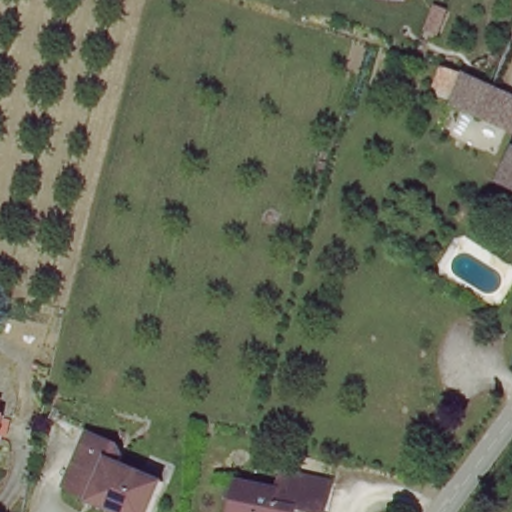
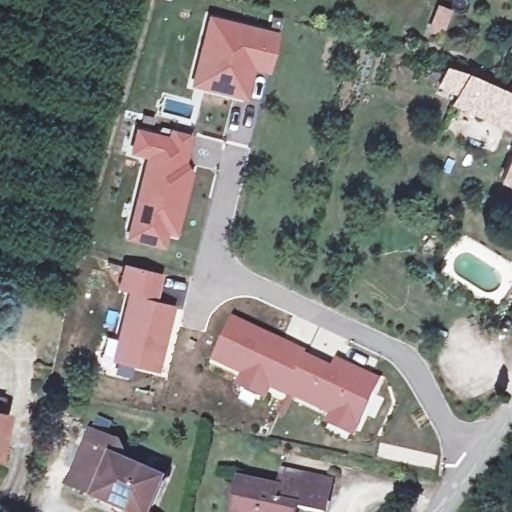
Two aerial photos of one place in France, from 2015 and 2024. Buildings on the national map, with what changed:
new [(204,16),(273,33),(265,68),(248,64),(241,94),(204,85),(188,82),(198,42),(204,16)]
unchanged [(460,80),(490,89),(512,99),(512,140),(446,111),(460,80)]
new [(184,132),(177,162),(182,170),(168,231),(124,220),(141,154),(126,150),(130,129),(163,137),(165,127),(184,132)]
unchanged [(508,157),(512,159),(512,193),(496,184),(508,157)]
new [(158,229),(154,243),(121,235),(124,220),(158,229)]
new [(109,361),(107,361),(123,290),(113,287),(120,262),(162,272),(157,299),(175,304),(158,373),(131,367),(128,378),(106,371),(109,361)]
new [(233,316),(307,351),(331,364),(335,357),(380,377),(353,437),(321,422),(325,414),(270,390),(264,401),(232,386),(237,375),(213,364),(233,316)]
unchanged [(2,402),(0,407),(0,402),(2,402)]
unchanged [(4,421),(0,437),(0,420),(4,421)]
unchanged [(82,428),(109,436),(117,446),(113,459),(157,473),(144,512),(135,512),(92,494),(61,481),(71,457),(82,428)]
unchanged [(315,477),(309,511),(283,506),(282,512),(227,512),(233,478),(278,485),(280,471),(315,477)]

